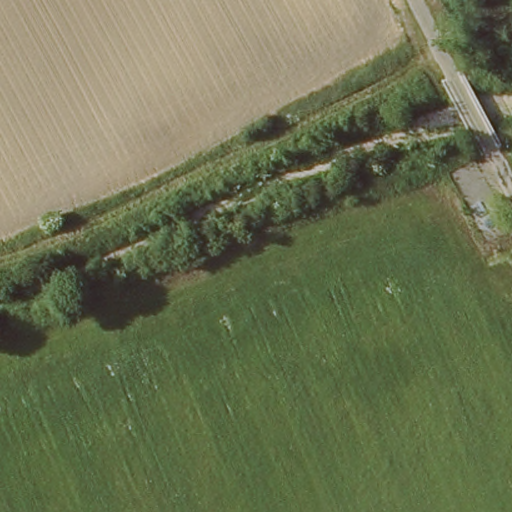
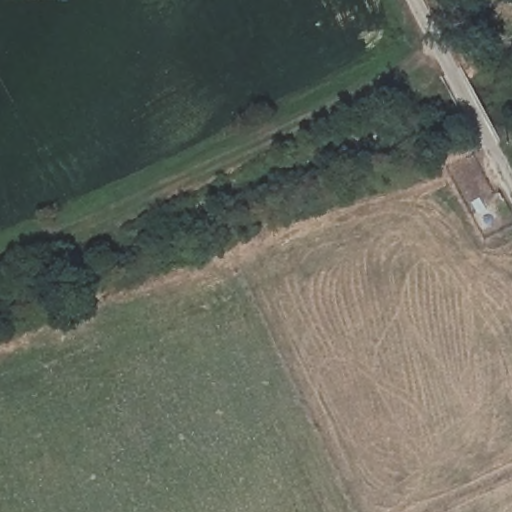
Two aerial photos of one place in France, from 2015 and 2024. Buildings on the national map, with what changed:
[]

